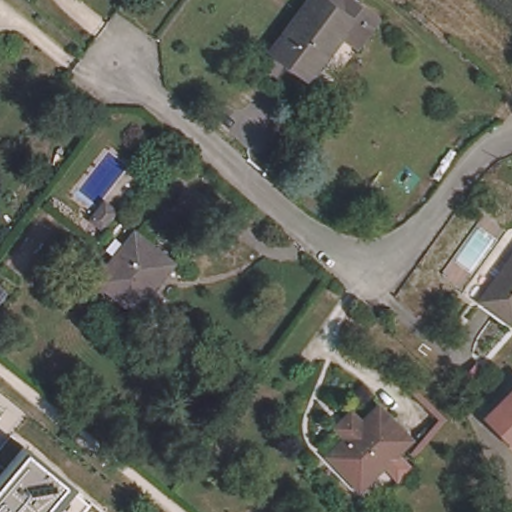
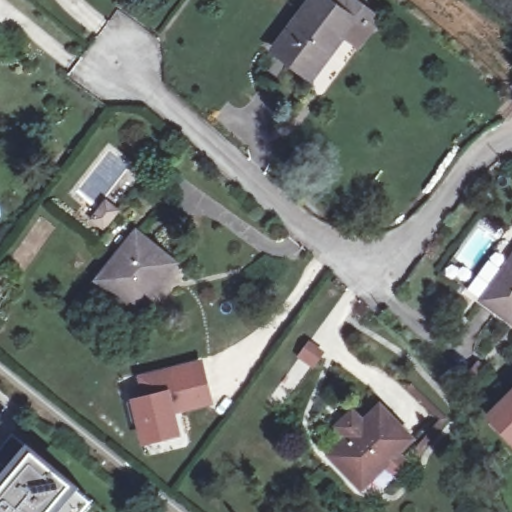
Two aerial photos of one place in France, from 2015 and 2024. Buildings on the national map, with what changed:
unchanged [(272,57),(313,0),(341,0),(359,13),(376,25),(356,52),(340,40),(308,84),(272,57)]
unchanged [(147,314),(107,282),(143,234),(184,265),(147,314)]
unchanged [(488,303),(512,267),(512,318),(488,303)]
new [(211,388),(208,389),(211,405),(176,414),(181,436),(148,444),(143,422),(136,424),(132,404),(151,400),(147,380),(206,366),(211,388)]
unchanged [(486,415),(512,388),(512,443),(486,415)]
unchanged [(386,409),(417,441),(365,490),(334,458),(354,440),(344,429),(359,414),(370,424),(386,409)]
unchanged [(79,487),(93,501),(85,512),(0,512),(0,475),(26,444),(79,487)]

